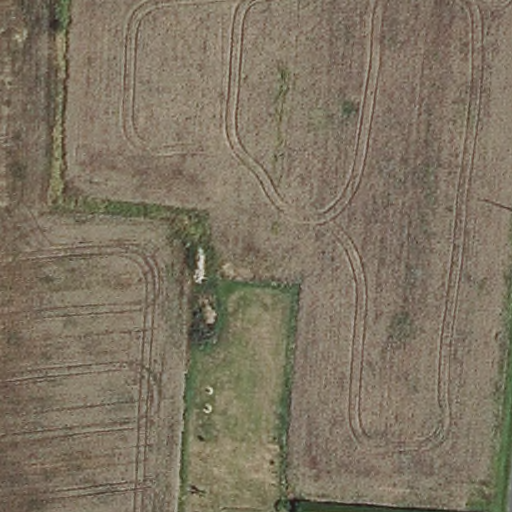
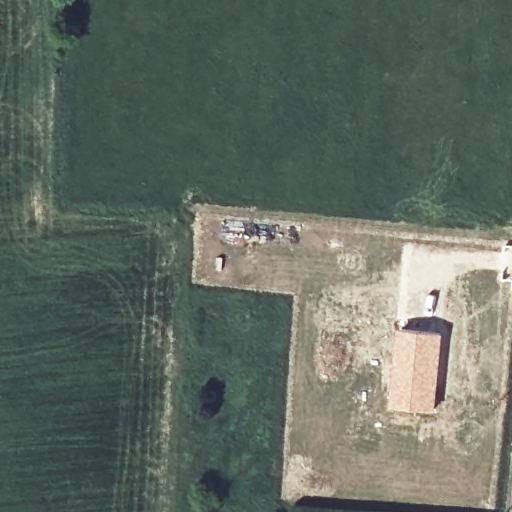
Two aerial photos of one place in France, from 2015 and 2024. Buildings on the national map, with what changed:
new [(399,327),(446,331),(437,410),(391,406),(399,327)]

